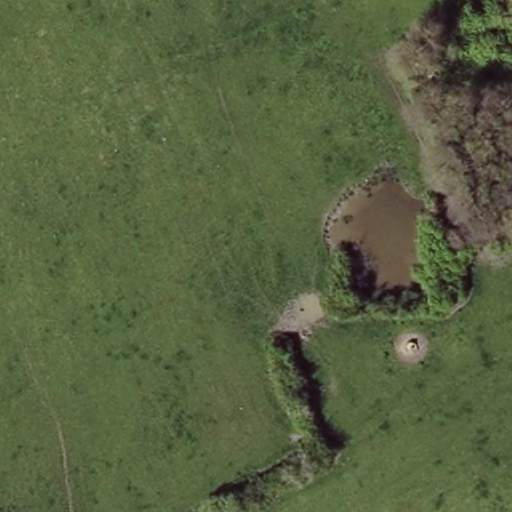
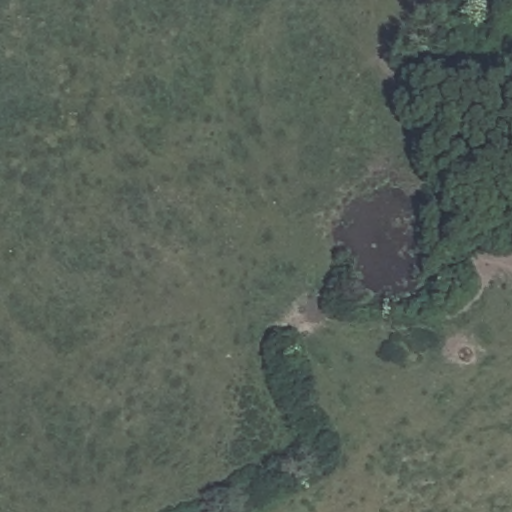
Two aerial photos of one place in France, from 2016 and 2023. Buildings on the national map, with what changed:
[]

